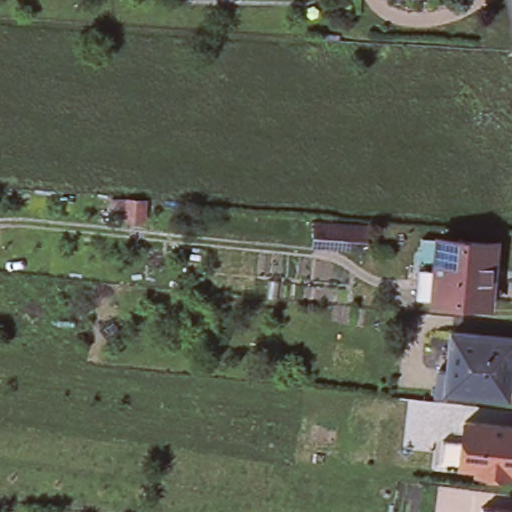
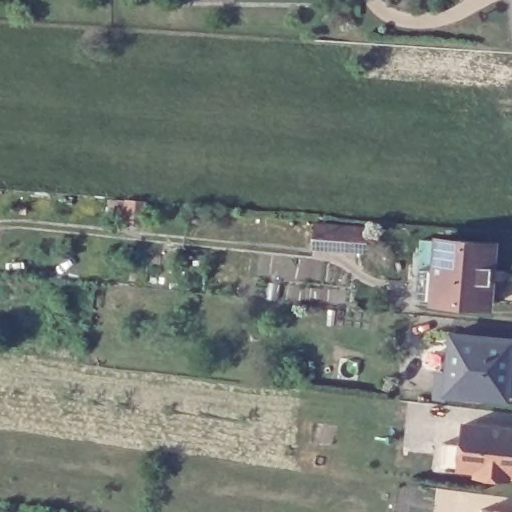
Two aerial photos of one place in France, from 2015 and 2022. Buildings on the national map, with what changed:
unchanged [(145,203),(142,226),(118,224),(120,201),(145,203)]
unchanged [(312,221),(368,224),(367,252),(312,249),(312,221)]
unchanged [(432,299),(432,296),(417,295),(420,267),(422,239),(437,240),(437,236),(496,242),(493,274),(490,305),(432,299)]
unchanged [(510,338),(507,369),(443,362),(447,331),(510,338)]
unchanged [(428,395),(432,368),(442,369),(443,362),(507,369),(504,400),(440,392),(440,397),(428,395)]
unchanged [(465,444),(468,422),(512,427),(512,475),(512,477),(462,471),(442,469),(445,441),(465,444)]
unchanged [(512,511),(512,512),(490,512),(490,508),(512,511)]

